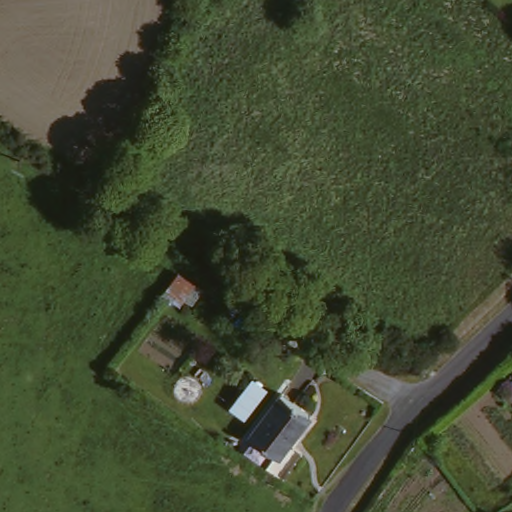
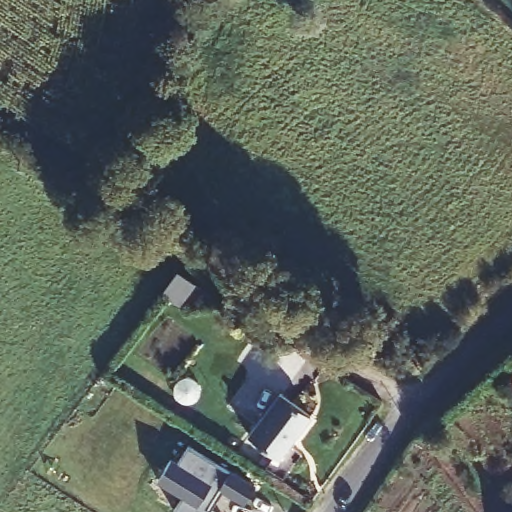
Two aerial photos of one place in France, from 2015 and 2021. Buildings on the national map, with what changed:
unchanged [(176,270),(194,280),(179,301),(161,290),(176,270)]
new [(247,376),(262,388),(241,415),(226,403),(247,376)]
unchanged [(280,458),(248,436),(280,394),(311,417),(280,458)]
new [(184,495),(159,479),(173,457),(179,462),(189,444),(255,486),(245,501),(223,490),(212,509),(216,512),(177,512),(174,511),(184,495)]

